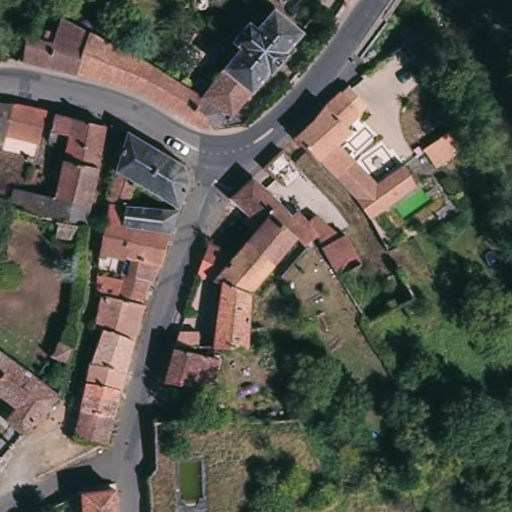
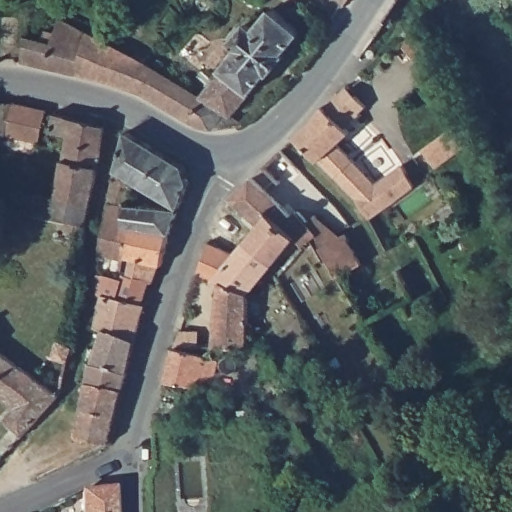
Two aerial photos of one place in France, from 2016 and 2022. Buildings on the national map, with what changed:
unchanged [(340,0),(348,0),(344,5),(340,0)]
unchanged [(198,95),(237,51),(229,44),(245,25),(253,30),(271,10),(299,34),(282,53),(284,56),(267,76),(264,74),(230,114),(245,123),(239,128),(209,132),(196,129),(185,123),(146,99),(107,84),(71,75),(19,64),(23,39),(35,41),(37,33),(42,31),(53,33),(58,18),(87,34),(127,55),(198,95)]
unchanged [(330,172),(323,164),(321,162),(296,136),(340,92),(341,92),(362,113),(348,128),(352,132),(339,145),(353,161),(363,173),(344,192),(336,178),(330,172)]
unchanged [(0,135),(18,139),(15,154),(0,150),(0,104),(8,104),(0,135)]
unchanged [(34,158),(15,154),(18,139),(0,135),(8,104),(20,105),(44,111),(34,158)]
unchanged [(84,228),(51,221),(7,208),(12,189),(52,202),(64,139),(46,133),(53,113),(59,115),(104,130),(84,228)]
unchanged [(470,146),(430,174),(415,156),(454,126),(470,146)]
unchanged [(110,175),(122,134),(180,166),(184,189),(175,209),(132,184),(121,210),(105,209),(110,175)]
unchanged [(372,218),(370,219),(356,198),(402,164),(416,186),(372,218)]
unchanged [(281,212),(285,209),(308,232),(295,244),(293,242),(289,233),(261,212),(253,220),(251,218),(222,194),(242,176),(281,212)]
unchanged [(353,262),(332,275),(312,239),(308,232),(285,209),(288,208),(305,212),(327,230),(332,233),(336,232),(353,262)]
unchanged [(122,258),(104,253),(103,259),(96,259),(105,209),(121,210),(173,213),(164,236),(163,236),(130,228),(122,258)]
unchanged [(262,265),(234,242),(251,218),(253,220),(261,212),(289,233),(262,265)]
unchanged [(73,245),(53,240),(56,225),(76,230),(73,245)]
unchanged [(158,268),(155,267),(150,285),(144,283),(123,279),(127,260),(122,258),(130,228),(163,236),(158,268)]
unchanged [(283,366),(266,371),(253,341),(238,346),(240,291),(233,288),(211,281),(210,283),(193,276),(187,274),(183,272),(192,240),(193,237),(227,250),(234,242),(262,265),(244,287),(253,296),(253,299),(251,308),(264,338),(271,336),(283,366)]
unchanged [(138,308),(98,298),(98,277),(118,281),(119,278),(123,279),(144,283),(138,308)]
unchanged [(211,281),(233,288),(240,291),(238,346),(202,345),(210,283),(211,281)]
unchanged [(129,344),(99,332),(92,330),(98,298),(138,308),(140,309),(129,344)]
unchanged [(423,310),(425,314),(414,321),(404,305),(416,298),(423,310)]
unchanged [(77,412),(70,410),(73,398),(79,399),(83,386),(88,367),(81,365),(85,349),(91,350),(99,332),(129,344),(122,377),(117,394),(111,420),(105,448),(71,439),(77,412)]
unchanged [(175,350),(178,335),(179,335),(199,335),(198,350),(175,350)]
unchanged [(74,363),(74,365),(57,359),(61,345),(77,350),(74,363)]
unchanged [(213,387),(192,390),(166,385),(175,350),(219,364),(213,387)]
unchanged [(56,399),(53,402),(20,439),(1,422),(12,410),(0,401),(0,357),(56,399)]
unchanged [(416,404),(403,411),(397,399),(409,392),(416,404)]
unchanged [(115,512),(80,512),(80,506),(70,512),(52,512),(48,505),(77,491),(78,489),(113,488),(115,512)]

